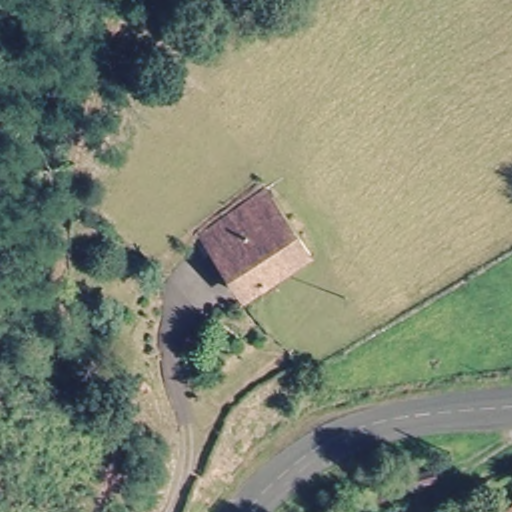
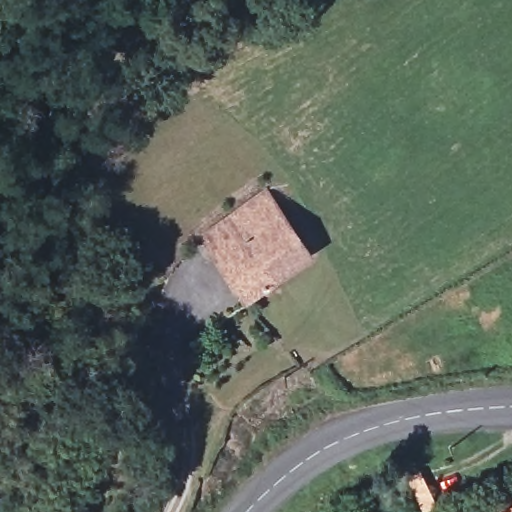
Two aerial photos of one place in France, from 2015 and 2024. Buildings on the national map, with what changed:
unchanged [(307,254),(248,304),(200,244),(261,195),(307,254)]
unchanged [(512,511),(512,512),(510,512),(512,511)]

